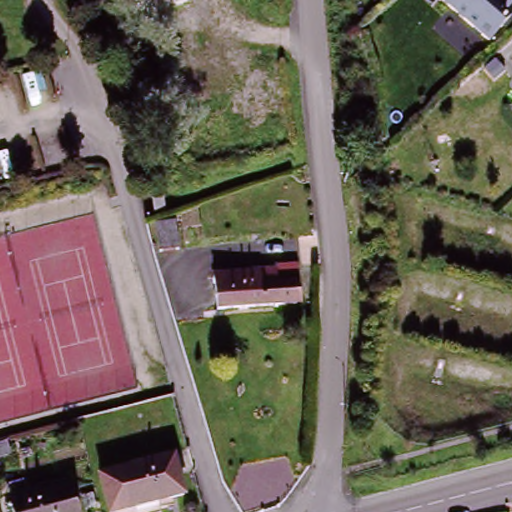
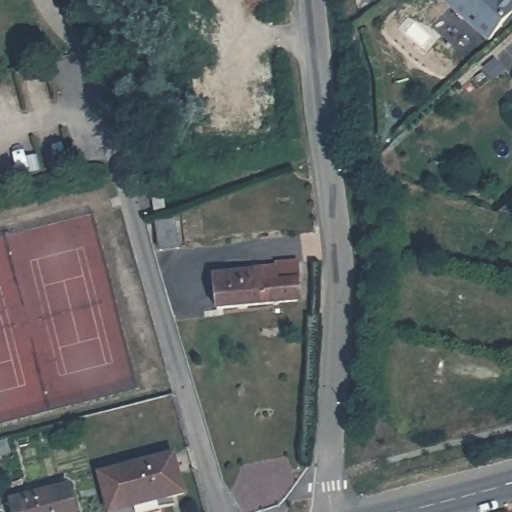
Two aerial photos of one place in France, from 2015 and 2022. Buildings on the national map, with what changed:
unchanged [(452,0),(512,0),(512,23),(497,41),(452,0)]
unchanged [(169,215),(158,216),(156,201),(168,200),(169,215)]
unchanged [(161,230),(180,227),(184,255),(165,258),(161,230)]
unchanged [(213,311),(209,276),(239,273),(239,272),(273,270),(273,266),(294,265),(295,278),(290,279),(293,302),(213,311)]
unchanged [(107,512),(96,471),(169,452),(179,488),(153,495),(156,511),(153,512),(107,512)]
unchanged [(15,512),(12,502),(70,487),(77,512),(15,512)]

